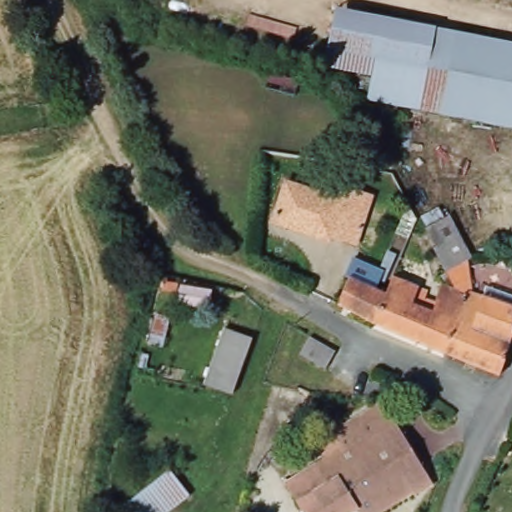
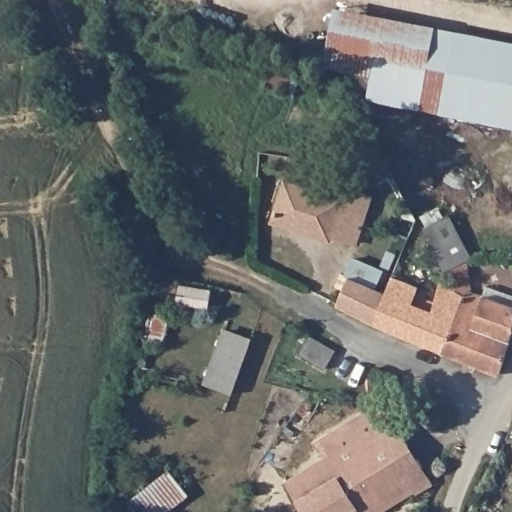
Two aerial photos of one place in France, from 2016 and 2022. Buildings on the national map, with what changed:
unchanged [(512,43),(512,128),(369,100),(374,75),(325,65),(336,9),(512,43)]
unchanged [(275,210),(286,177),(342,195),(347,183),(372,191),(357,239),(332,231),(330,235),(290,222),(273,217),(275,210)]
unchanged [(444,271),(432,247),(434,245),(425,228),(449,215),(471,258),(467,260),(444,271)]
unchanged [(454,289),(444,271),(467,260),(472,292),(482,296),(486,286),(512,296),(512,335),(499,375),(444,353),(466,297),(455,291),(454,289)]
unchanged [(374,323),(338,305),(349,276),(386,293),(374,323)]
unchanged [(374,323),(386,293),(392,276),(428,291),(425,298),(435,302),(440,282),(455,291),(466,297),(444,353),(374,323)]
unchanged [(247,340),(227,394),(201,385),(221,331),(247,340)]
unchanged [(325,365),(299,350),(309,332),(335,347),(325,365)]
unchanged [(383,397),(433,480),(417,490),(416,488),(377,512),(361,512),(356,505),(344,512),(302,512),(303,506),(286,478),(327,453),(317,436),(383,397)]
unchanged [(511,420),(512,415),(512,420),(511,420)]
unchanged [(169,468),(189,493),(164,512),(118,512),(117,510),(169,468)]

